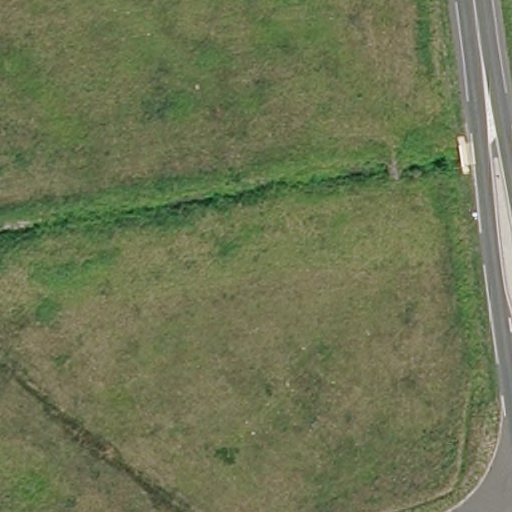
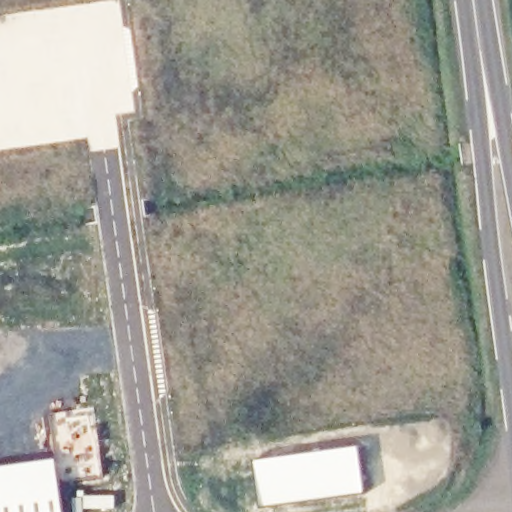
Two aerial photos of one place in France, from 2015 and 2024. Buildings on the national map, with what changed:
new [(356,447),(362,492),(262,506),(254,461),(356,447)]
new [(62,512),(0,512),(0,466),(54,458),(62,512)]

